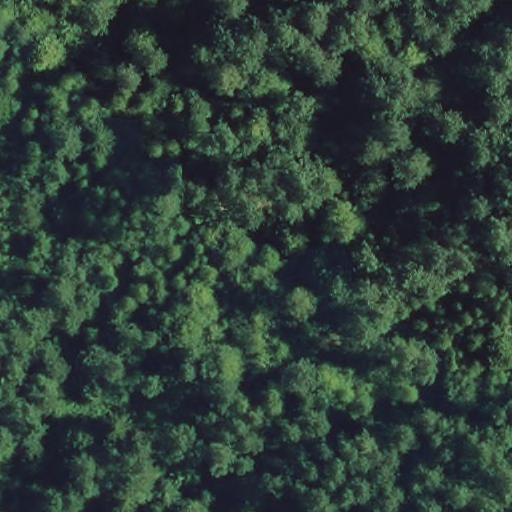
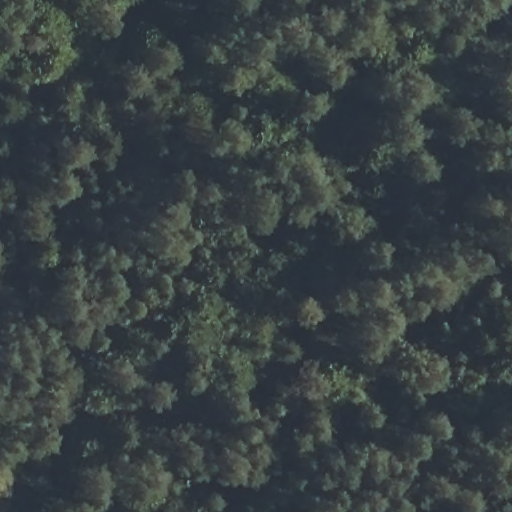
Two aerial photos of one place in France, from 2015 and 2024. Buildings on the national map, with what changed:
[]

